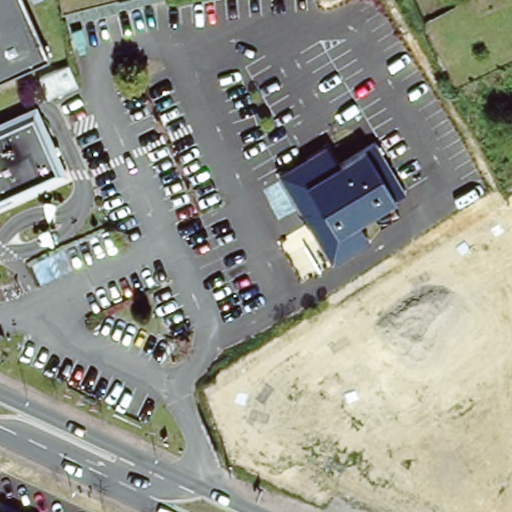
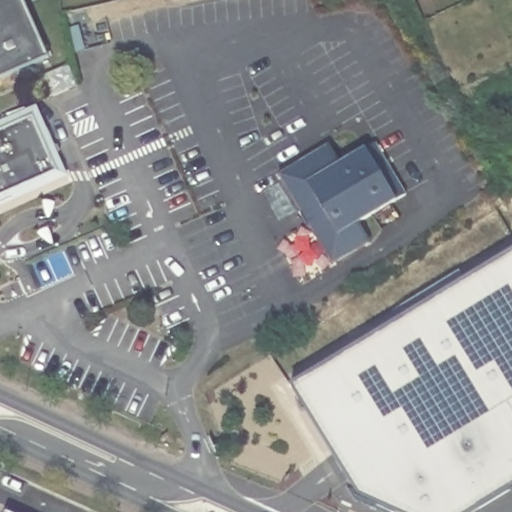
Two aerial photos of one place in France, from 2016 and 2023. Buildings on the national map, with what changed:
unchanged [(0,0),(25,0),(49,56),(0,78),(0,0)]
unchanged [(52,100),(50,97),(40,78),(66,67),(70,65),(80,85),(75,87),(52,100)]
unchanged [(43,178),(0,198),(0,127),(18,119),(18,121),(36,113),(49,143),(56,140),(59,146),(52,149),(60,168),(42,175),(43,178)]
unchanged [(357,224),(368,242),(331,263),(279,175),(328,146),(339,164),(364,149),(374,143),(405,194),(394,200),(357,224)]
new [(474,512),(391,512),(358,497),(291,386),(512,251),(512,489),(474,512)]

